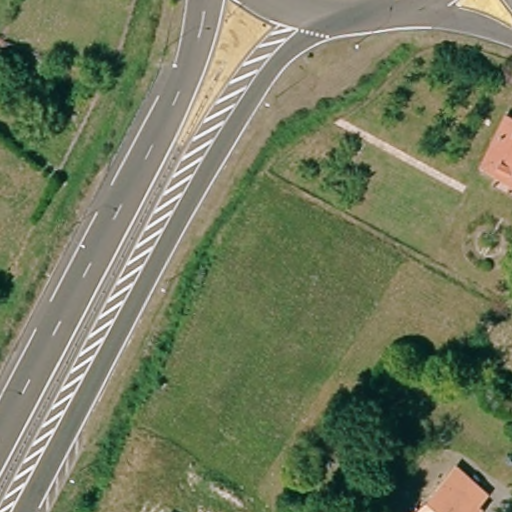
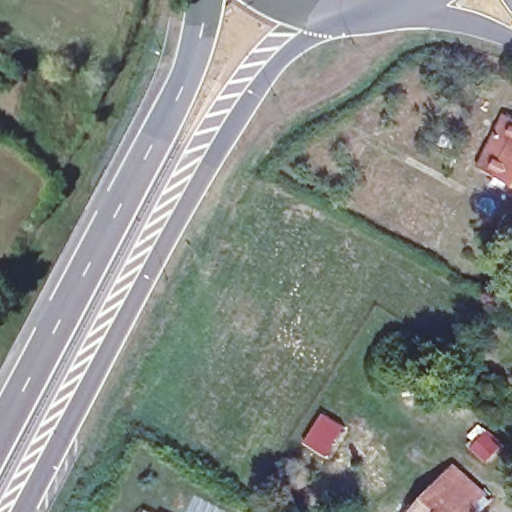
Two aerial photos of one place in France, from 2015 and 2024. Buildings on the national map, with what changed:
unchanged [(500,114),(512,120),(512,181),(478,165),(500,114)]
unchanged [(452,467),(481,492),(463,512),(414,512),(452,467)]

